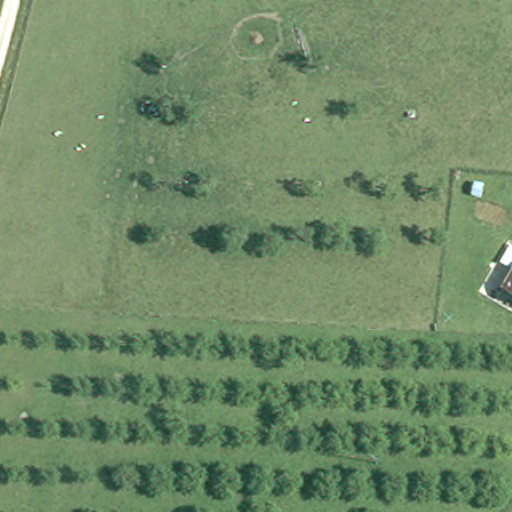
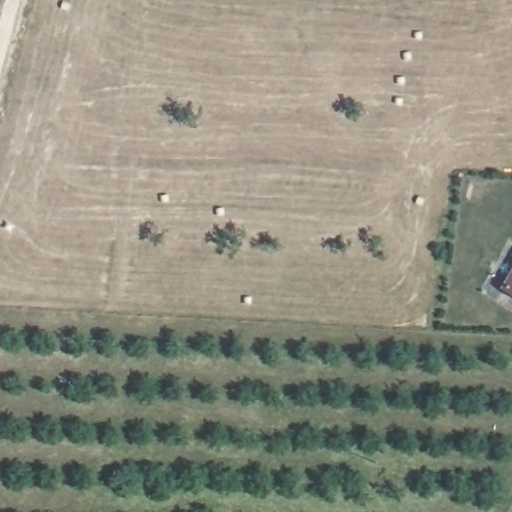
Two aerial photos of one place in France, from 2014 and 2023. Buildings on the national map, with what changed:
unchanged [(512,279),(512,295),(505,291),(512,279)]

